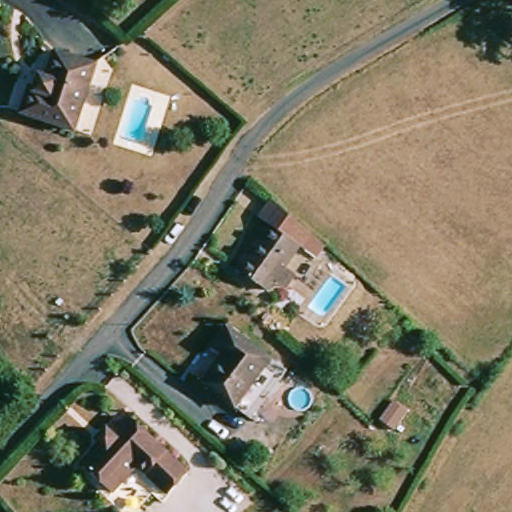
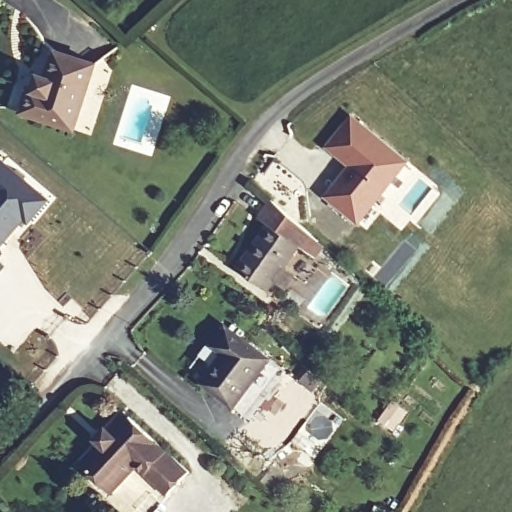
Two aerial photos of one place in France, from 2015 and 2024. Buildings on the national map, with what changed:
unchanged [(70,130),(17,112),(25,87),(30,89),(35,75),(42,77),(50,51),(91,64),(70,130)]
new [(326,146),(352,114),(410,162),(359,224),(324,197),(347,166),(326,146)]
new [(47,201),(29,220),(24,215),(0,244),(0,163),(1,161),(47,201)]
unchanged [(305,254),(294,246),(262,291),(232,270),(264,225),(255,218),(267,200),(314,240),(312,243),(317,247),(310,258),(305,254)]
unchanged [(235,407),(203,383),(224,354),(212,346),(227,326),(270,358),(235,407)]
unchanged [(164,494),(133,465),(109,492),(77,463),(95,443),(92,439),(102,428),(118,411),(125,416),(184,472),(164,494)]

